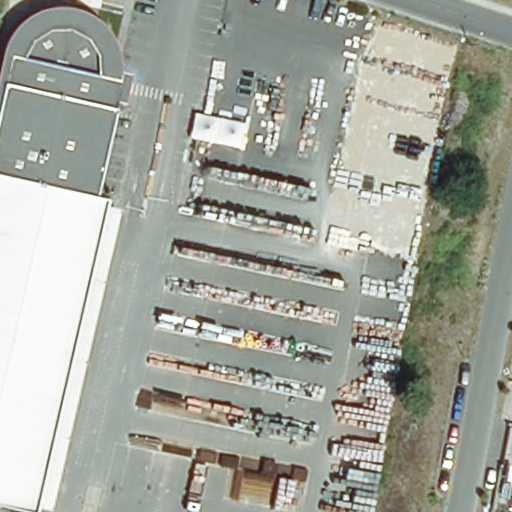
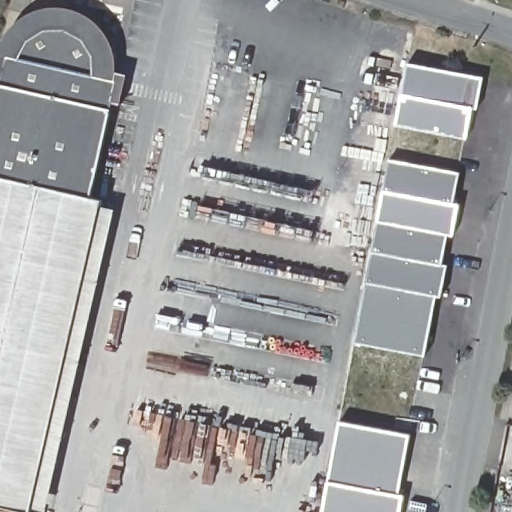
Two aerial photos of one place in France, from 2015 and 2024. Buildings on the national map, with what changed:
unchanged [(27,512),(22,512),(0,507),(0,65),(3,54),(5,48),(7,42),(11,36),(15,31),(15,30),(20,26),(25,23),(30,19),(37,16),(43,14),(49,14),(56,14),(63,14),(69,15),(75,18),(81,21),(87,24),(87,25),(91,29),(96,34),(100,39),(102,45),(105,51),(106,58),(107,64),(106,71),(105,78),(115,80),(88,197),(99,199),(27,512)]
new [(481,108),(474,107),(468,139),(396,125),(408,62),(484,76),(481,108)]
new [(391,159),(460,172),(454,201),(460,203),(454,235),(447,234),(442,264),(447,264),(446,272),(372,258),(391,159)]
new [(425,354),(356,341),(372,258),(446,272),(441,295),(436,295),(425,354)]
new [(409,435),(396,512),(323,512),(339,423),(409,435)]

